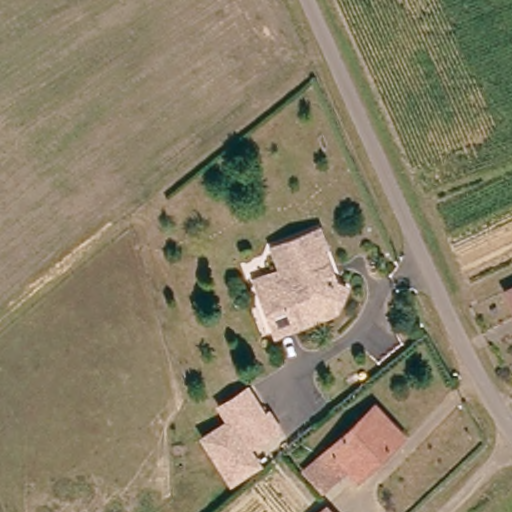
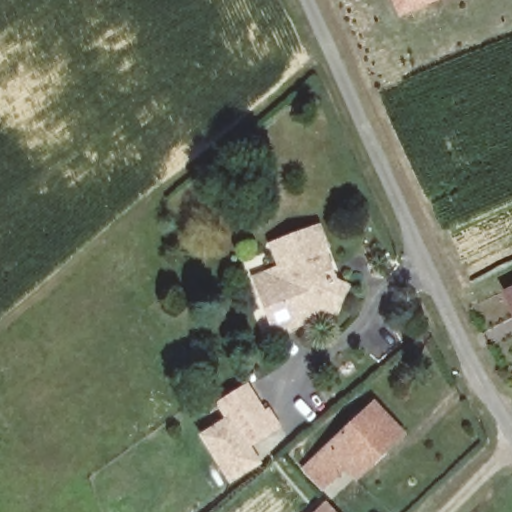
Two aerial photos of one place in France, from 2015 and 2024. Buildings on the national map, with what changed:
new [(399,15),(393,0),(432,0),(399,15)]
unchanged [(278,340),(254,287),(280,275),(269,253),(308,235),(313,232),(320,248),(317,250),(324,265),(333,285),(345,288),(341,301),(337,313),(298,331),(278,340)]
unchanged [(512,305),(503,287),(512,283),(512,305)]
unchanged [(228,476),(200,432),(226,416),(217,401),(244,383),(262,411),(266,409),(275,423),(243,443),(254,460),(228,476)]
unchanged [(402,434),(360,474),(349,463),(327,483),(311,466),(377,405),(402,434)]

